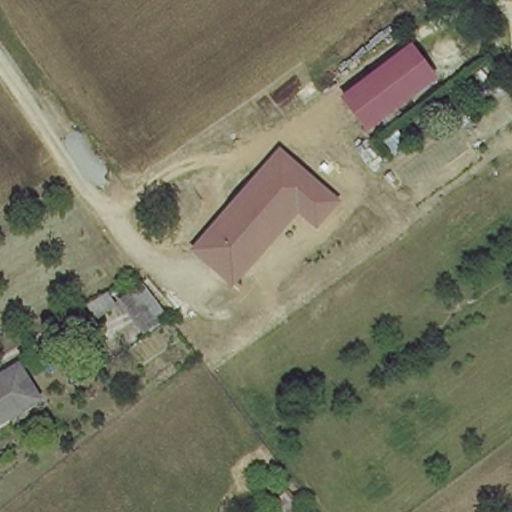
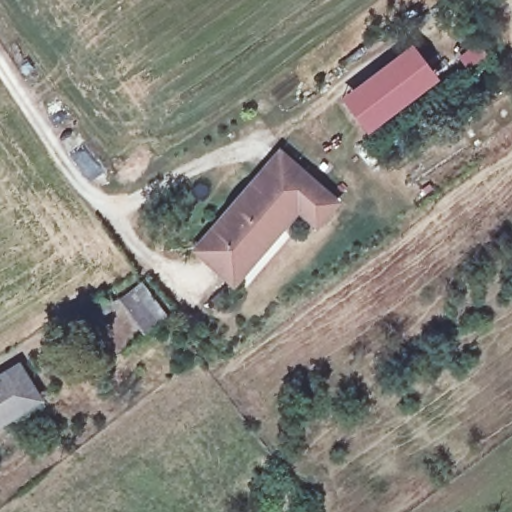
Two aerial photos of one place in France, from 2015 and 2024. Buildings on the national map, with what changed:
unchanged [(435,77),(363,127),(340,94),(409,44),(435,77)]
unchanged [(278,147),(342,199),(317,230),(297,214),(230,287),(188,250),(278,147)]
unchanged [(166,315),(140,333),(118,308),(94,326),(80,307),(104,290),(113,298),(140,282),(166,315)]
unchanged [(19,368),(37,398),(0,421),(0,379),(19,368)]

